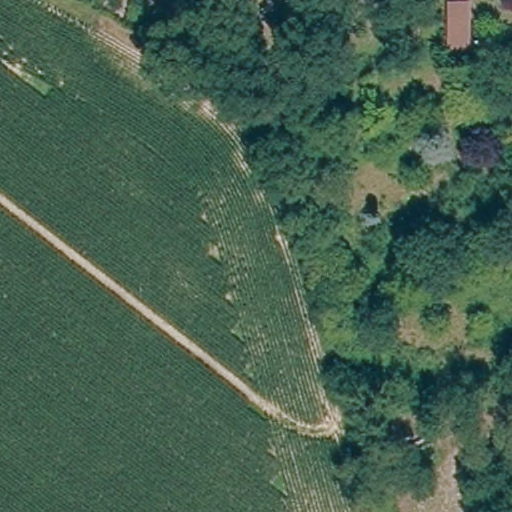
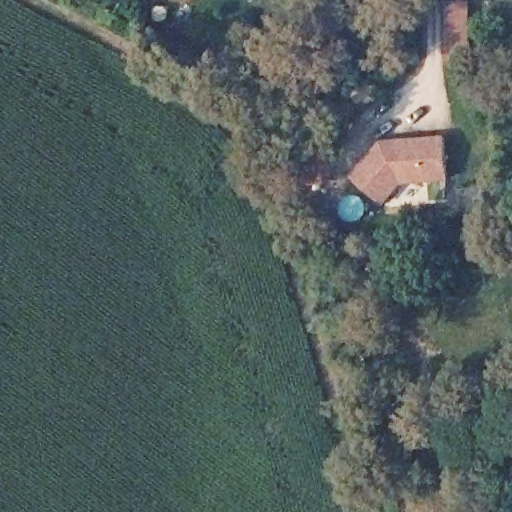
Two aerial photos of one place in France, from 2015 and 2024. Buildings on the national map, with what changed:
unchanged [(450,0),(463,0),(463,26),(450,27),(450,0)]
new [(348,176),(381,142),(445,137),(447,182),(400,186),(383,207),(348,176)]
unchanged [(307,141),(332,140),(333,159),(307,161),(307,141)]

